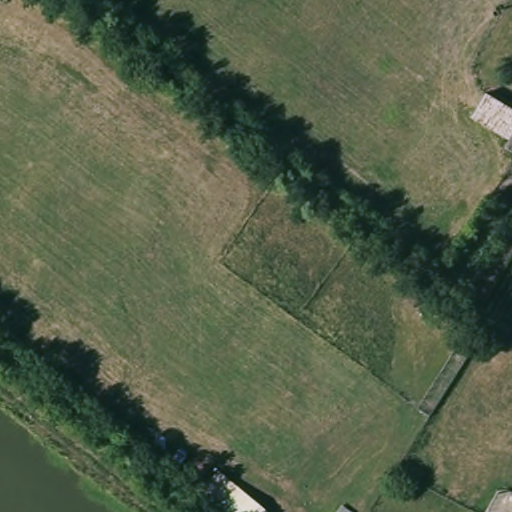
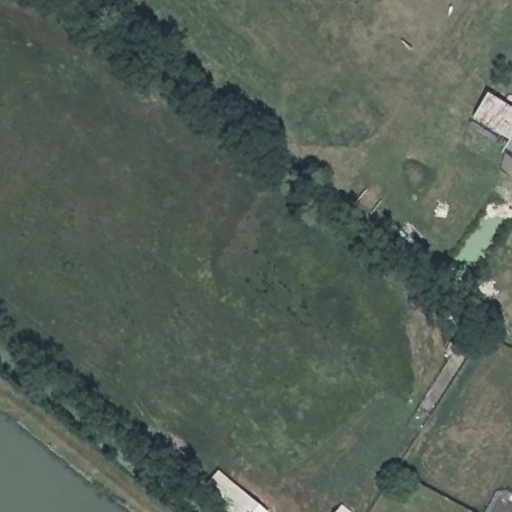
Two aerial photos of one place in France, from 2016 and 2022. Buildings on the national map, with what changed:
unchanged [(491,99),(512,112),(512,143),(478,122),(491,99)]
unchanged [(512,147),(512,153),(509,152),(512,147)]
unchanged [(224,472),(269,512),(227,512),(205,493),(224,472)]

